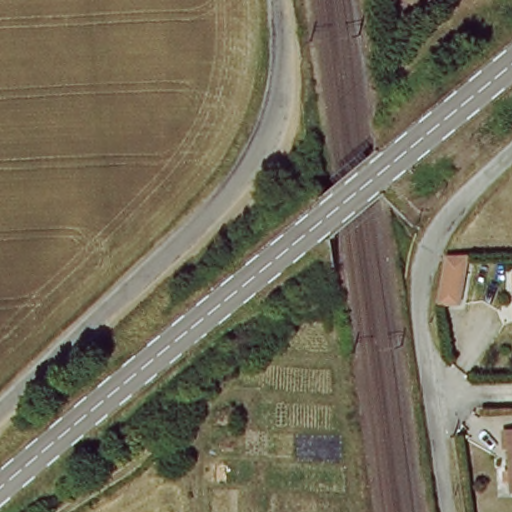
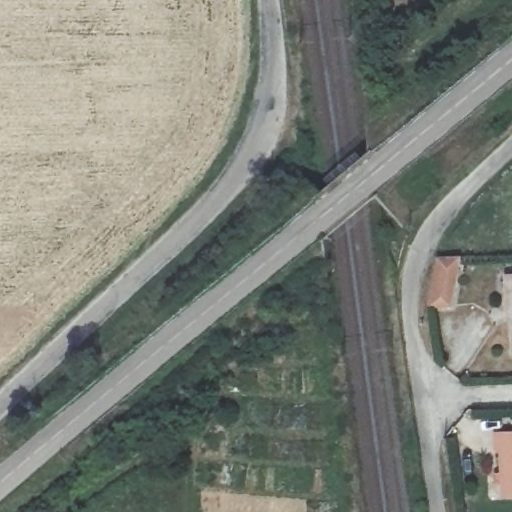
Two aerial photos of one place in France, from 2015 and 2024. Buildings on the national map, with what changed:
unchanged [(452,310),(434,311),(429,311),(432,295),(441,265),(464,264),(452,310)]
unchanged [(508,287),(507,271),(512,271),(512,287),(508,287)]
unchanged [(499,442),(498,426),(512,425),(512,486),(506,487),(505,441),(499,442)]

